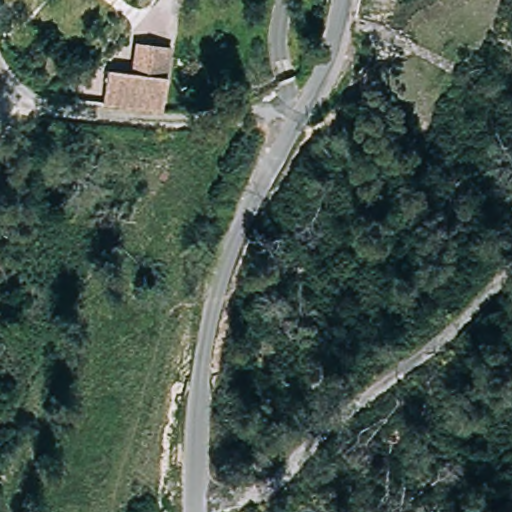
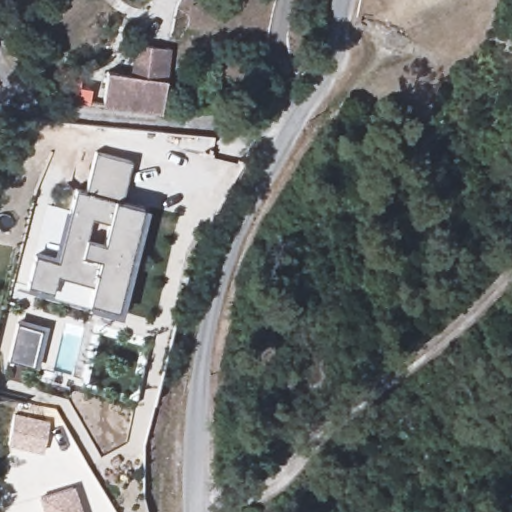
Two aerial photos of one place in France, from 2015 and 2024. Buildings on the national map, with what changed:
unchanged [(106,76),(146,81),(149,51),(169,53),(162,110),(103,104),(106,76)]
new [(131,162),(121,202),(147,208),(120,316),(87,309),(90,301),(94,284),(57,275),(51,299),(26,292),(36,251),(54,255),(65,211),(71,212),(77,190),(86,193),(96,153),(131,162)]
new [(48,327),(38,369),(8,361),(19,320),(48,327)]
new [(75,486),(83,512),(45,512),(40,497),(75,486)]

